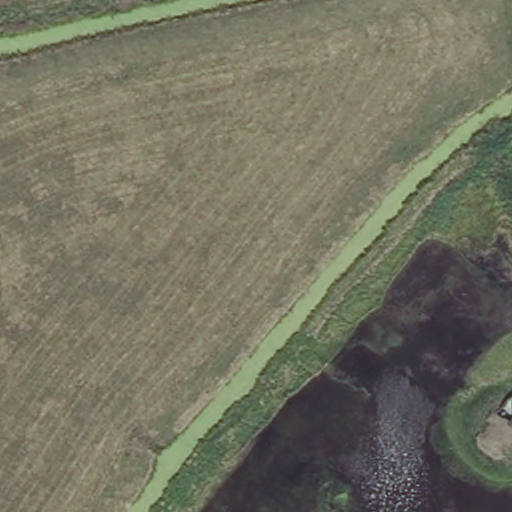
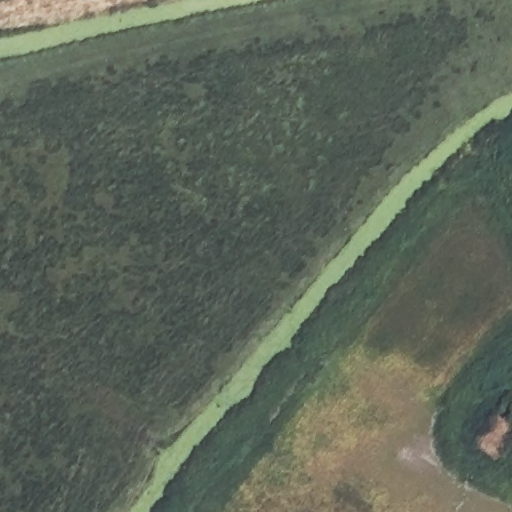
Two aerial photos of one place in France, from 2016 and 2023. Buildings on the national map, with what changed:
unchanged [(498,422),(512,431),(512,436),(502,451),(487,437),(498,422)]

